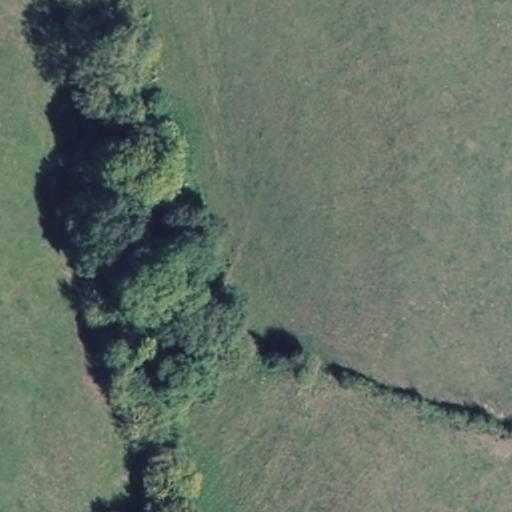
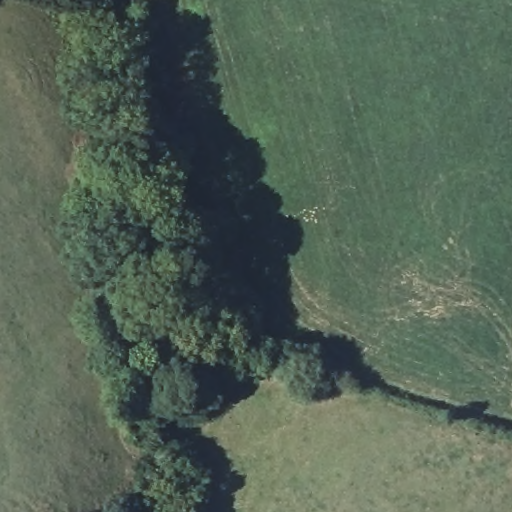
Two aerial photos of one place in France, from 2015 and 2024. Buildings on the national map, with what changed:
[]

